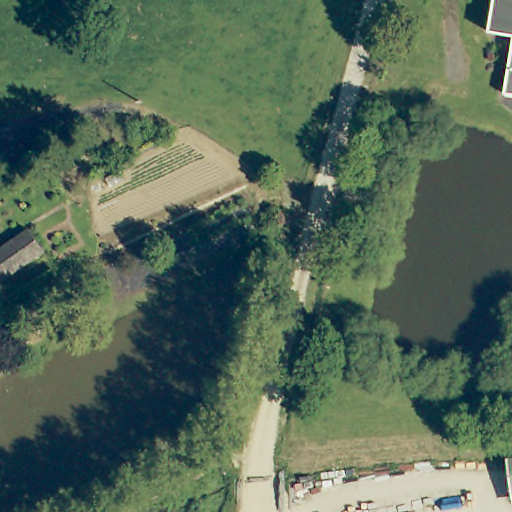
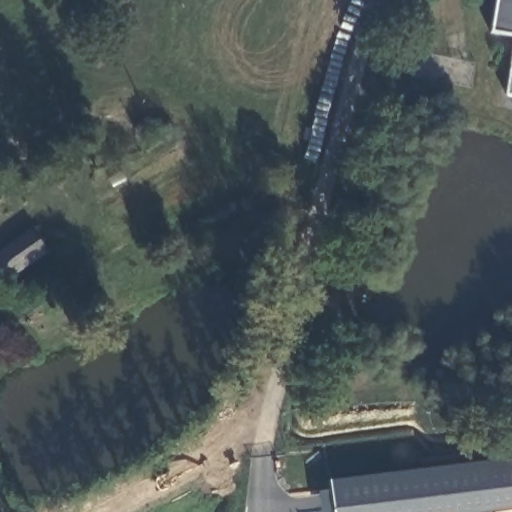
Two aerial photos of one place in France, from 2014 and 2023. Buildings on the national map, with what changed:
unchanged [(508,35),(485,31),(490,0),(512,0),(512,93),(498,91),(508,35)]
unchanged [(45,252),(0,283),(0,253),(15,242),(31,231),(45,252)]
demolished [(512,483),(509,455),(512,454),(512,483)]
new [(512,458),(512,509),(487,512),(333,512),(330,481),(512,458)]

